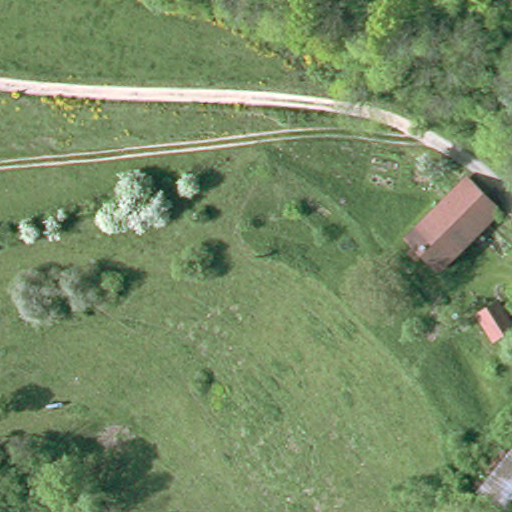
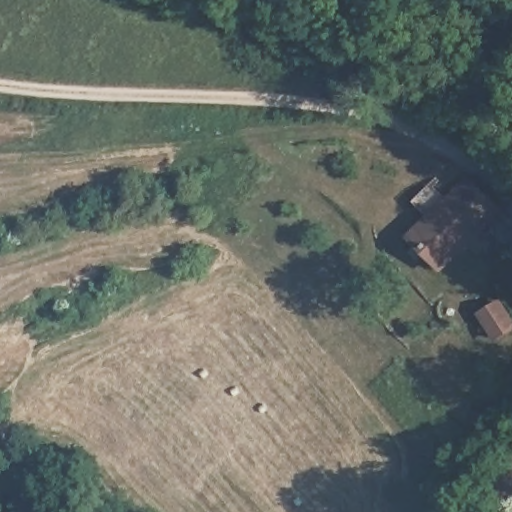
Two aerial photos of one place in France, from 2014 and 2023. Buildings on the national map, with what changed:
unchanged [(416,249),(408,242),(467,182),(494,209),(498,214),(440,273),(425,259),(413,272),(402,262),(416,249)]
unchanged [(460,299),(486,275),(507,297),(480,320),(460,299)]
unchanged [(485,487),(512,458),(512,503),(508,508),(485,487)]

